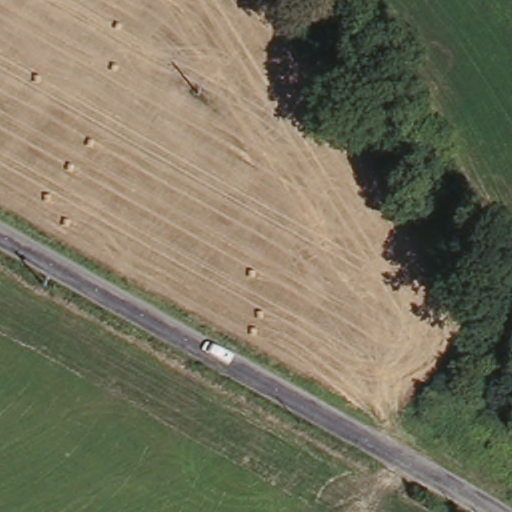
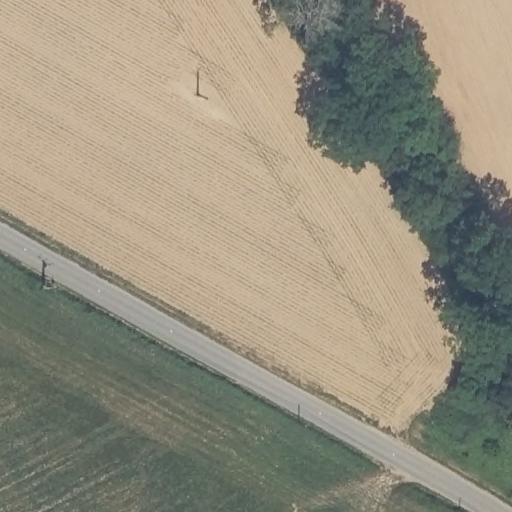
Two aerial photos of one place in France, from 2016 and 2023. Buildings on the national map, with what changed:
unchanged [(399,476),(411,481),(403,490),(394,485),(399,476)]

